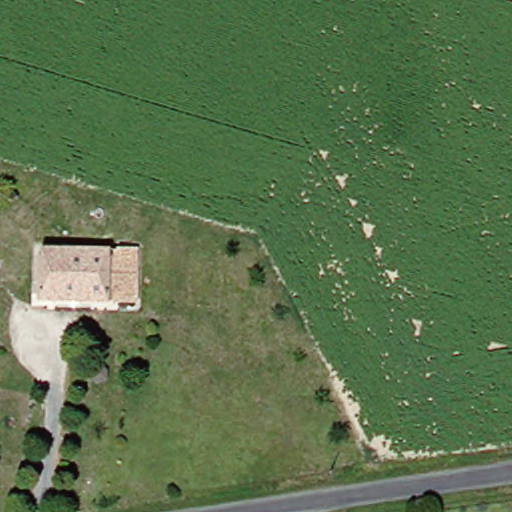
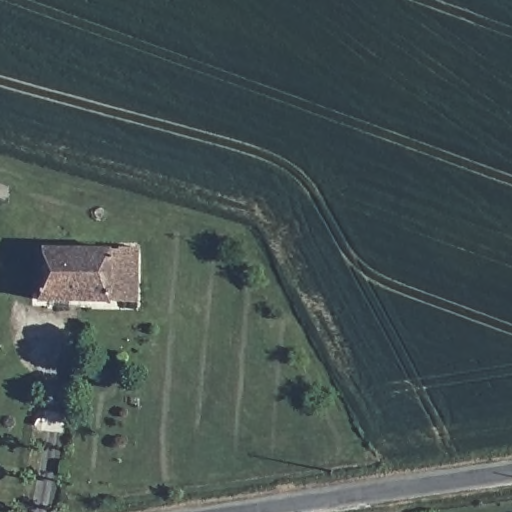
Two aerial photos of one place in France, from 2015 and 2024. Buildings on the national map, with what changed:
unchanged [(135,253),(134,304),(36,302),(35,251),(135,253)]

